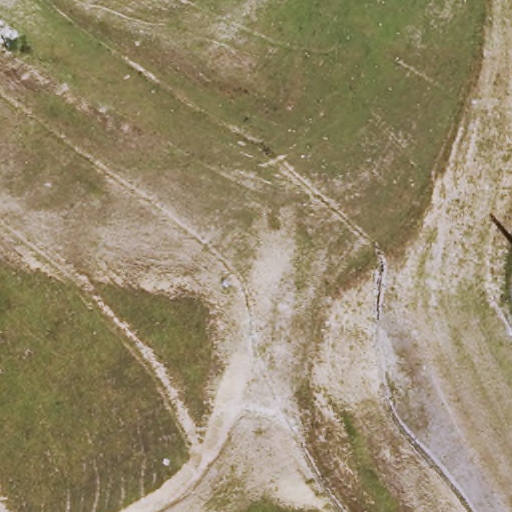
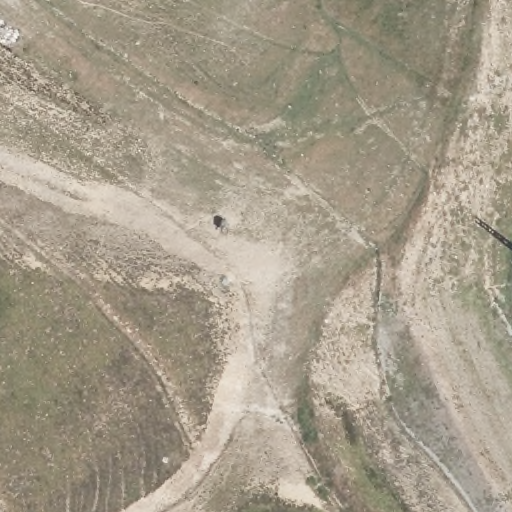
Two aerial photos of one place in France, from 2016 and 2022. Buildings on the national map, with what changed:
[]

